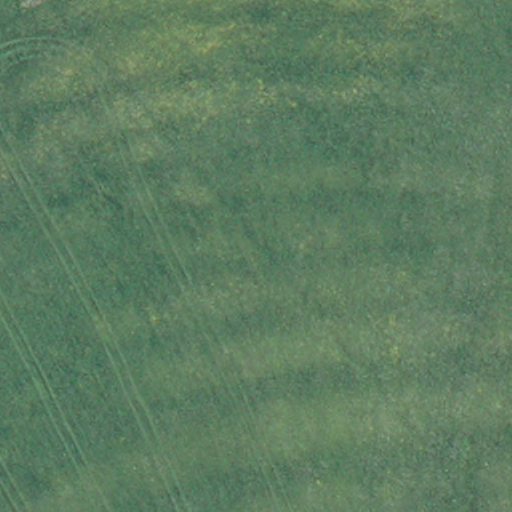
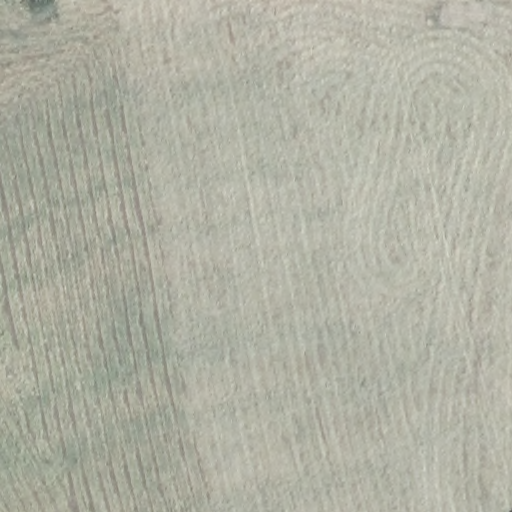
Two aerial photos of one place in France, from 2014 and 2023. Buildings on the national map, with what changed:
[]

